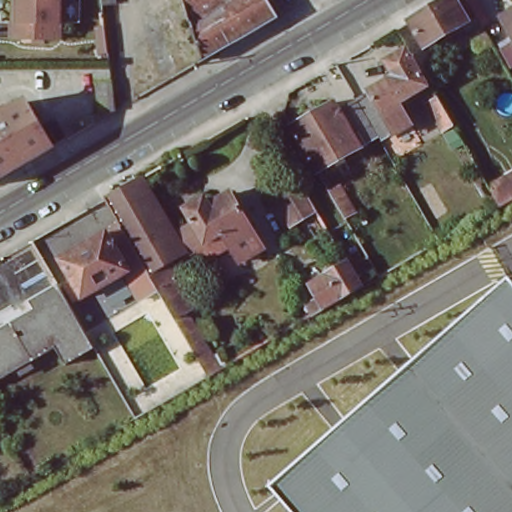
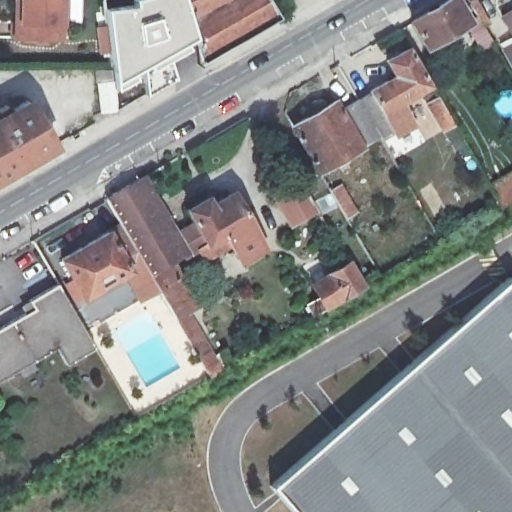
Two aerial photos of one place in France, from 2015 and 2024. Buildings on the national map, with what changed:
unchanged [(65,0),(61,44),(11,40),(17,0),(65,0)]
new [(185,0),(196,36),(184,43),(187,48),(168,59),(173,76),(144,91),(141,66),(131,71),(133,78),(116,87),(115,81),(103,9),(134,6),(133,0),(185,0)]
unchanged [(204,66),(185,0),(267,0),(281,23),(204,66)]
unchanged [(425,46),(409,19),(442,0),(456,0),(468,21),(425,46)]
unchanged [(504,16),(512,11),(512,29),(504,16)]
unchanged [(479,50),(469,31),(481,25),(492,43),(479,50)]
unchanged [(399,74),(390,59),(411,47),(432,83),(387,110),(397,126),(383,135),(361,96),(399,74)]
demolished [(98,83),(115,81),(119,111),(103,120),(98,83)]
new [(119,111),(103,120),(98,83),(115,81),(119,111)]
unchanged [(383,135),(323,171),(296,125),(341,99),(345,106),(361,96),(383,135)]
unchanged [(449,131),(431,101),(439,96),(457,126),(449,131)]
unchanged [(0,117),(28,101),(55,148),(0,180),(0,117)]
unchanged [(297,228),(282,202),(296,194),(279,165),(291,158),(323,213),(297,228)]
unchanged [(103,197),(119,187),(136,177),(169,236),(196,220),(188,206),(208,195),(212,201),(234,188),(269,247),(246,259),(232,239),(213,250),(208,242),(181,258),(179,255),(173,258),(201,304),(189,312),(215,355),(199,364),(174,321),(138,259),(103,197)]
unchanged [(509,203),(500,188),(512,181),(512,201),(509,203)]
unchanged [(334,192),(348,185),(363,211),(350,219),(334,192)]
unchanged [(174,321),(158,330),(124,273),(82,297),(59,258),(106,232),(126,266),(138,259),(174,321)]
unchanged [(312,280),(346,259),(360,284),(326,303),(312,280)]
unchanged [(20,304),(62,279),(99,343),(68,362),(57,344),(0,376),(0,326),(24,312),(20,304)]
unchanged [(276,489),(509,287),(512,289),(512,512),(296,512),(276,489)]

